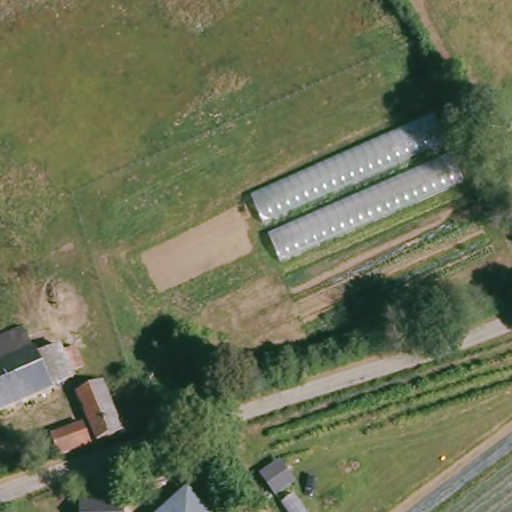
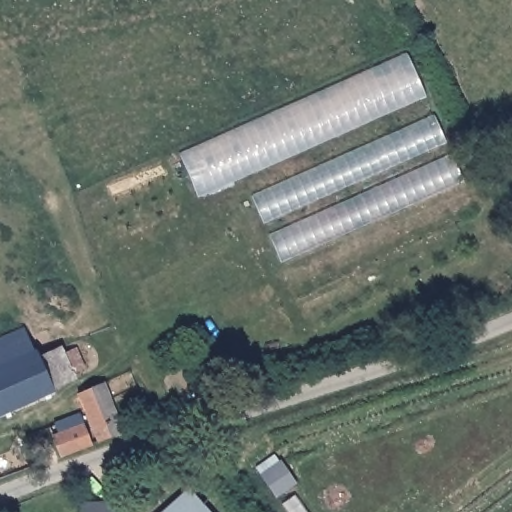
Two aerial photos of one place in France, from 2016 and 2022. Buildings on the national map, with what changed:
new [(427,98),(197,196),(180,156),(407,57),(427,98)]
unchanged [(432,116),(464,180),(280,263),(251,195),(432,116)]
unchanged [(50,343),(59,339),(64,350),(80,344),(90,369),(75,376),(77,383),(0,415),(0,343),(42,326),(50,343)]
unchanged [(125,432),(104,440),(85,392),(107,383),(125,432)]
unchanged [(61,434),(89,424),(96,443),(69,454),(61,434)]
unchanged [(124,512),(80,512),(80,500),(124,500),(124,512)]
unchanged [(185,512),(192,505),(198,512),(185,512)]

